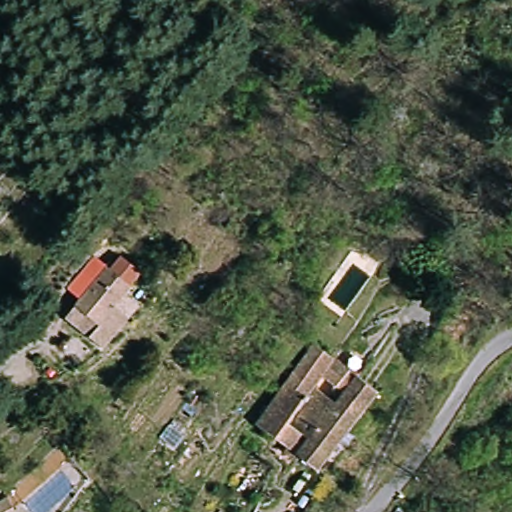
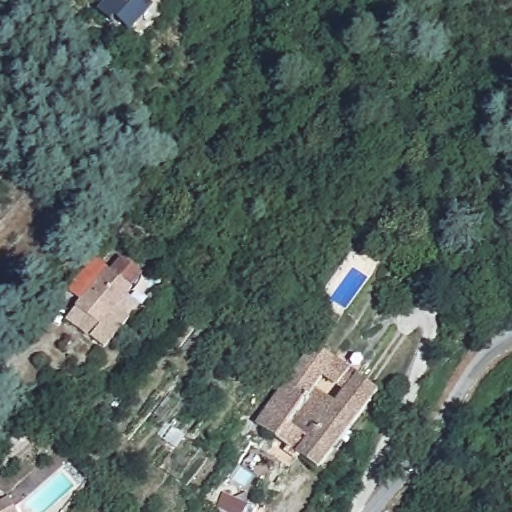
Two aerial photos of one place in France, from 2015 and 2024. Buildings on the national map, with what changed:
new [(108,0),(147,0),(155,7),(130,32),(115,19),(112,22),(98,12),(108,0)]
unchanged [(70,313),(78,304),(107,270),(132,291),(102,325),(95,335),(70,313)]
unchanged [(0,300),(0,290),(5,297),(0,300)]
unchanged [(307,401),(287,381),(318,345),(378,396),(345,436),(307,401)]
unchanged [(315,473),(253,421),(287,381),(307,401),(345,436),(315,473)]
unchanged [(236,512),(214,512),(225,502),(236,512)]
unchanged [(271,512),(258,512),(265,506),(271,512)]

